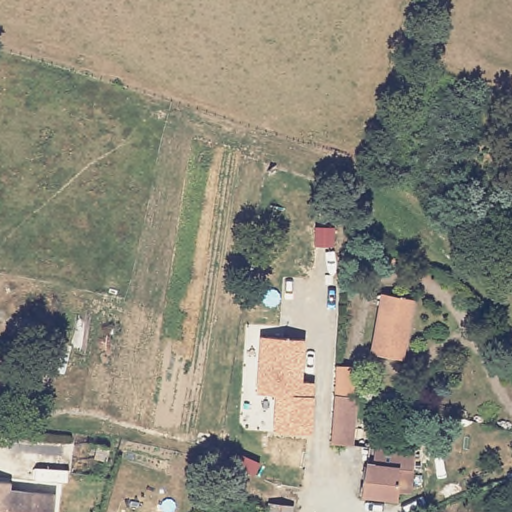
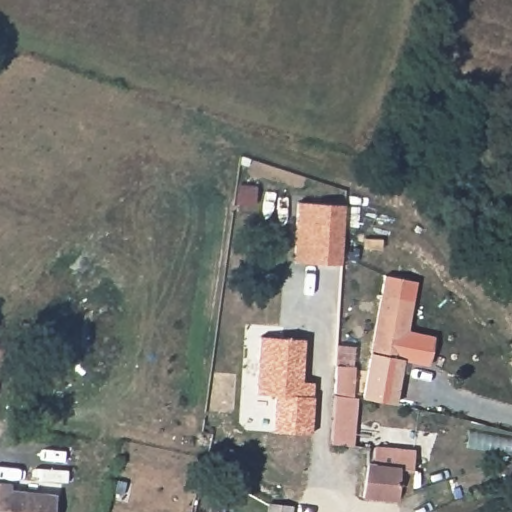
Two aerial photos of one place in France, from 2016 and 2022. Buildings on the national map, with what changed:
new [(346,203),(343,265),(294,262),(297,201),(346,203)]
unchanged [(412,303),(404,363),(372,358),(381,297),(412,303)]
unchanged [(305,340),(302,382),(314,382),(311,437),(272,434),(273,396),(255,395),(259,337),(305,340)]
unchanged [(10,353),(0,393),(0,351),(10,353)]
unchanged [(337,365),(357,366),(357,398),(353,443),(331,441),(335,394),(337,365)]
unchanged [(367,462),(375,462),(377,446),(415,451),(410,491),(399,491),(397,499),(363,495),(367,462)]
unchanged [(12,492),(56,495),(54,512),(0,512),(0,481),(12,482),(12,492)]
unchanged [(266,512),(267,502),(280,504),(293,505),(293,512),(266,512)]

